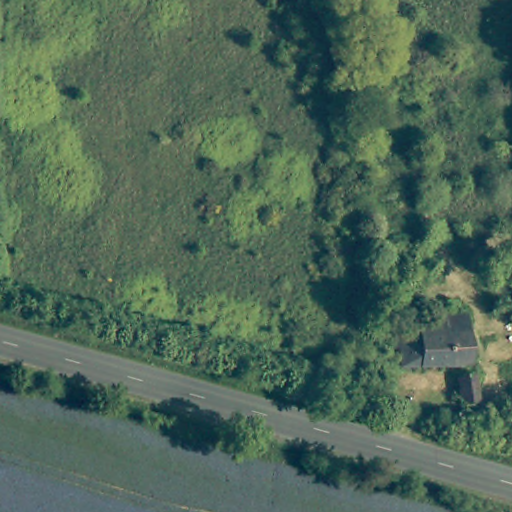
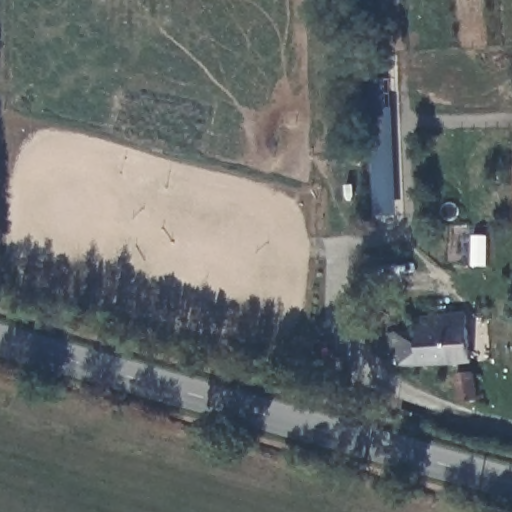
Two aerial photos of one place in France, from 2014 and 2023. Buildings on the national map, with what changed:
new [(398,215),(375,217),(371,109),(393,109),(398,215)]
unchanged [(423,327),(422,319),(466,314),(471,363),(399,371),(396,352),(388,352),(388,330),(423,327)]
unchanged [(475,376),(480,400),(465,404),(459,377),(475,376)]

